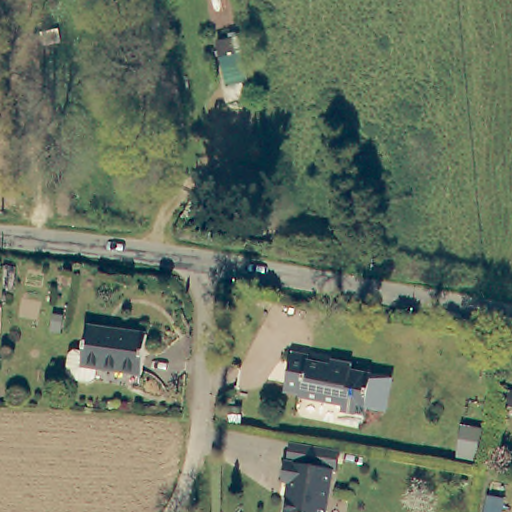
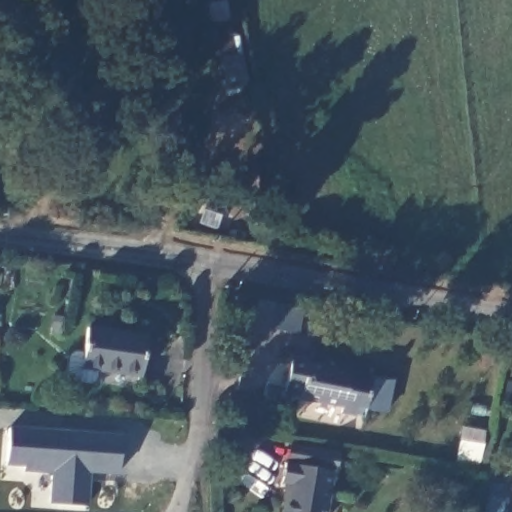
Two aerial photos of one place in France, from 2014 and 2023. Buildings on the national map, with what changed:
unchanged [(249,84),(222,89),(215,39),(244,35),(249,84)]
new [(308,309),(305,333),(269,327),(268,335),(251,332),(258,299),(308,309)]
unchanged [(91,330),(149,334),(149,342),(147,374),(104,371),(104,378),(97,382),(75,381),(71,374),(72,356),(77,352),(89,353),(90,338),(91,330)]
unchanged [(299,357),(298,362),(321,365),(322,360),(342,364),(341,370),(382,376),(377,409),(357,406),(357,414),(333,411),(335,405),(292,399),(292,397),(276,394),(282,355),(299,357)]
new [(91,450),(121,453),(121,471),(91,469),(87,506),(53,503),(54,471),(27,469),(27,462),(9,460),(11,426),(92,432),(91,450)]
unchanged [(337,478),(332,478),(326,512),(285,512),(289,489),(281,488),(284,469),(287,470),(290,450),(291,450),(341,459),(337,478)]

